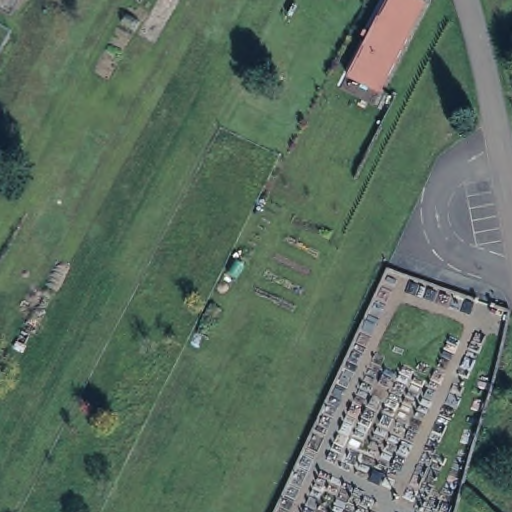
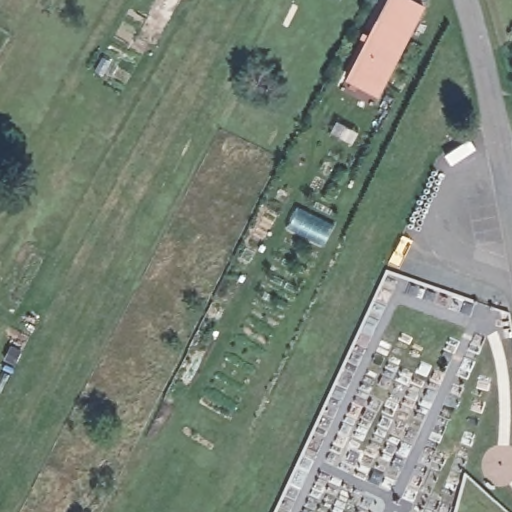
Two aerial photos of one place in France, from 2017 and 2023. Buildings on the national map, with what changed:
unchanged [(422,4),(377,94),(345,77),(385,0),(415,0),(422,4)]

